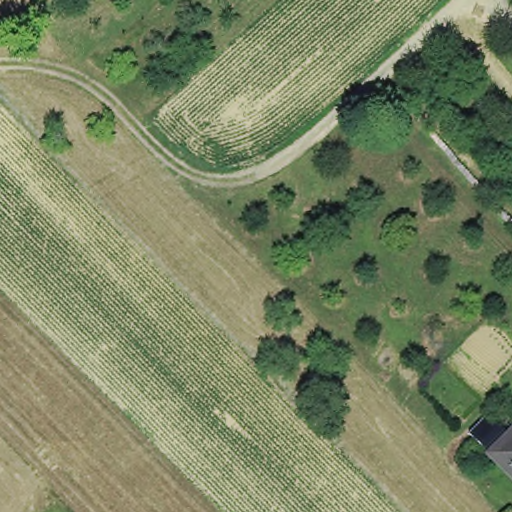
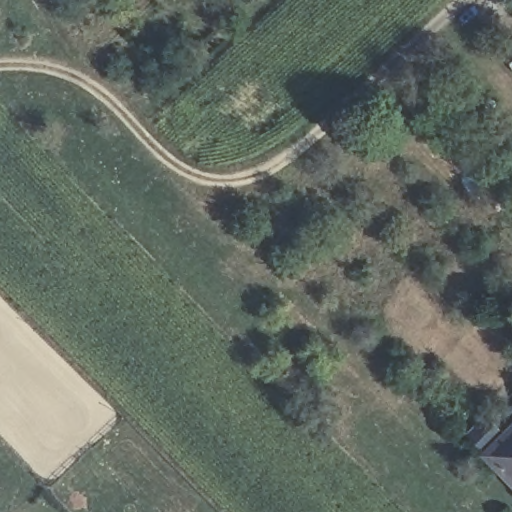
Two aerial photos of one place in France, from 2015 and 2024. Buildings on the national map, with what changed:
unchanged [(474,440),(494,421),(512,438),(512,478),(495,461),(474,440)]

